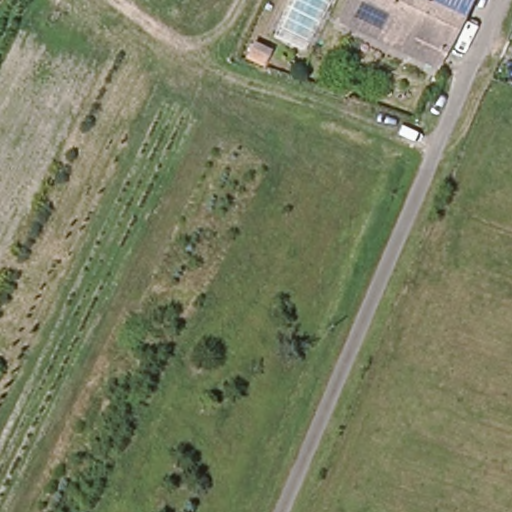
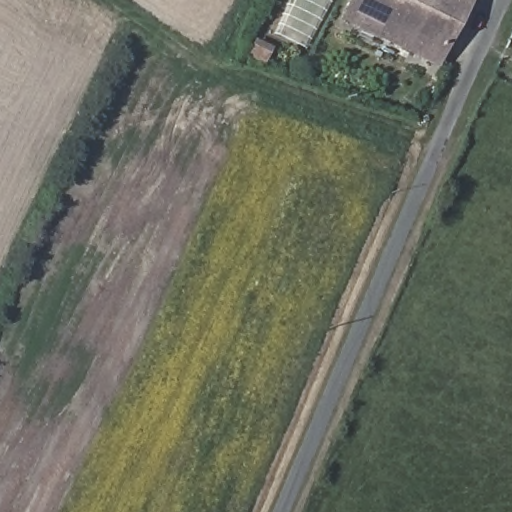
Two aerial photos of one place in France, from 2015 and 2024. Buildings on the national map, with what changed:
unchanged [(433,61),(341,19),(350,0),(463,0),(433,61)]

